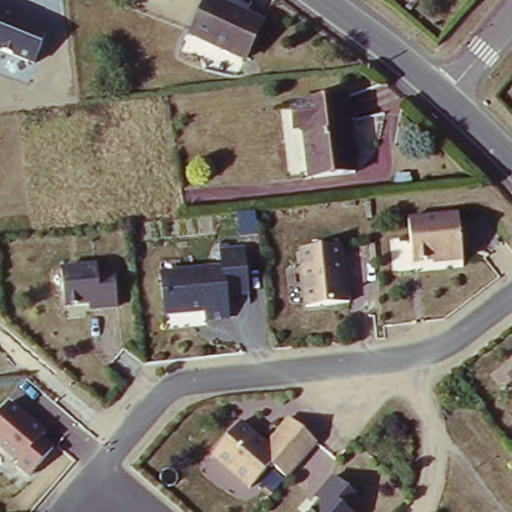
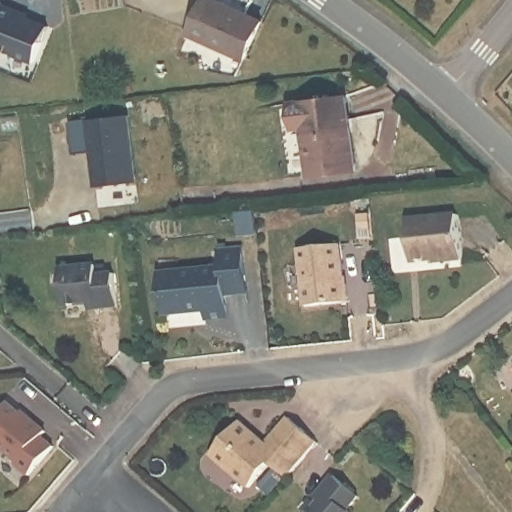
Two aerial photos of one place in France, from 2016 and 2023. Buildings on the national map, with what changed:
unchanged [(217,0),(266,23),(249,59),(194,36),(210,0),(217,0)]
unchanged [(0,51),(0,22),(45,38),(35,65),(0,51)]
unchanged [(313,179),(307,127),(297,130),(294,103),(350,97),(359,172),(313,179)]
new [(126,117),(132,180),(95,185),(91,151),(73,153),(70,122),(126,117)]
unchanged [(463,213),(466,262),(415,267),(411,215),(463,213)]
unchanged [(246,242),(253,292),(233,295),(234,317),(205,319),(206,312),(166,317),(161,275),(222,266),(219,244),(246,242)]
unchanged [(347,245),(354,301),(305,306),(299,248),(347,245)]
unchanged [(118,264),(122,305),(67,310),(65,268),(118,264)]
unchanged [(60,445),(32,477),(0,448),(0,414),(11,402),(60,445)]
unchanged [(263,442),(292,413),(322,437),(288,477),(271,463),(248,486),(212,458),(245,423),(263,442)]
unchanged [(365,497),(356,508),(359,512),(310,512),(317,505),(312,498),(339,472),(365,497)]

